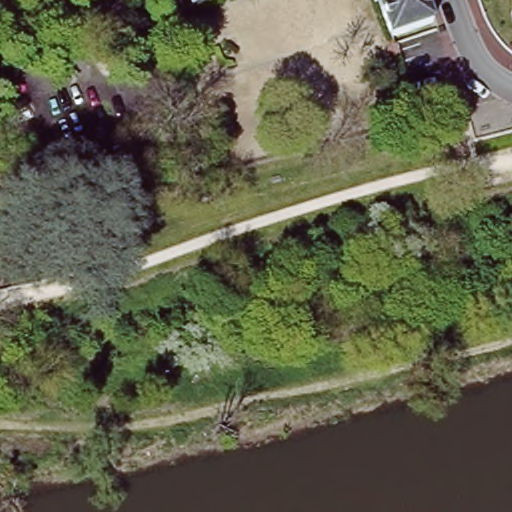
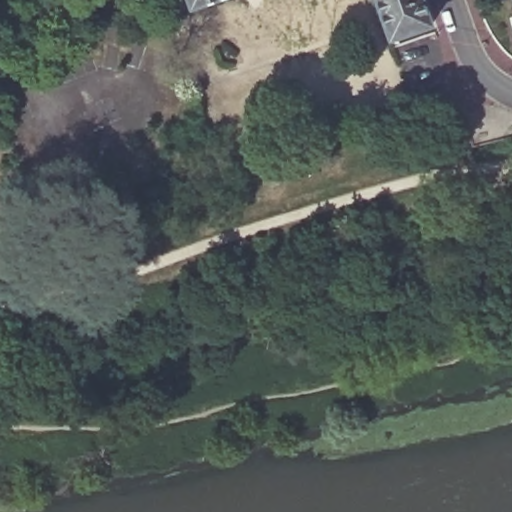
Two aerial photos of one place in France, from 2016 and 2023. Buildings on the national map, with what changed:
unchanged [(192,7),(190,0),(211,0),(192,7)]
unchanged [(377,0),(424,0),(432,22),(389,35),(377,0)]

